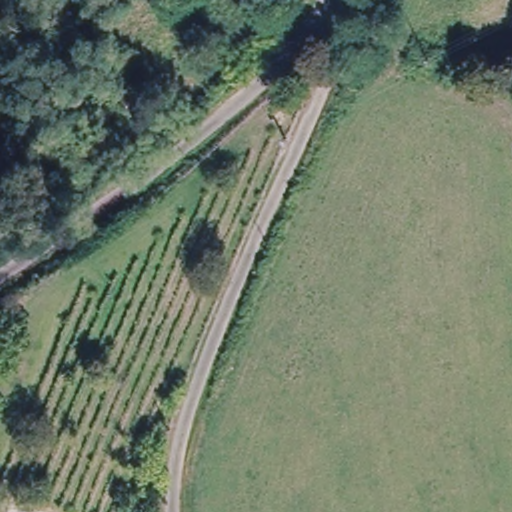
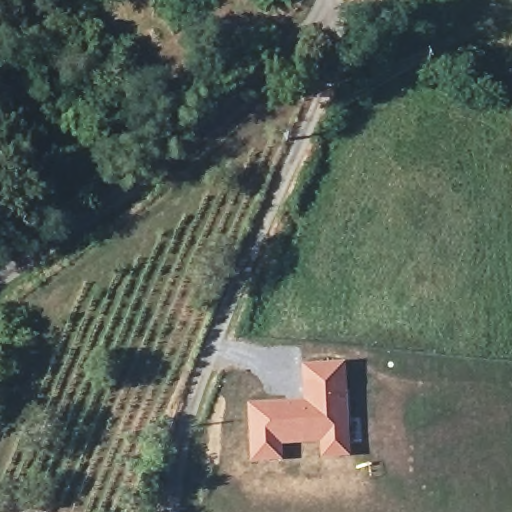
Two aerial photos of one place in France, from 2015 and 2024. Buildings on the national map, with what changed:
new [(64,175),(90,158),(104,179),(80,197),(64,175)]
new [(301,399),(300,364),(345,362),(350,457),(318,459),(317,444),(283,446),(283,459),(248,462),(245,403),(301,399)]

